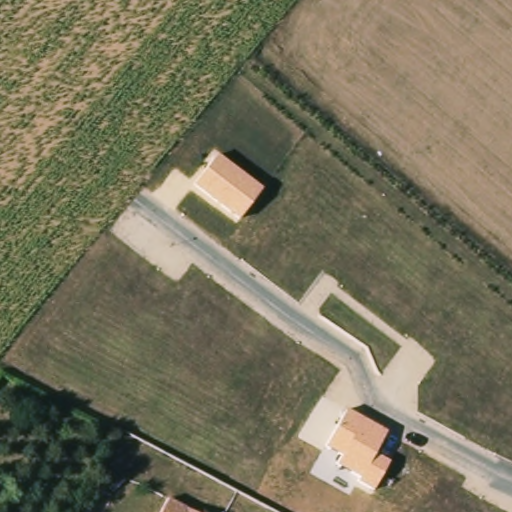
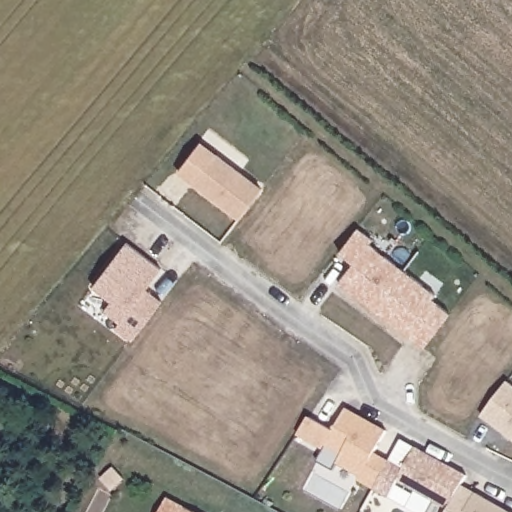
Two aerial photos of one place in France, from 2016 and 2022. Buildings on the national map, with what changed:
unchanged [(194,185),(177,172),(200,142),(217,155),(260,189),(237,219),(194,185)]
new [(338,283),(352,264),(338,253),(357,228),(372,239),(370,244),(437,294),(433,299),(449,312),(422,347),(338,283)]
new [(116,328),(119,324),(104,311),(112,302),(92,286),(127,244),(161,268),(146,289),(162,301),(132,341),(116,328)]
new [(481,417),(507,382),(512,385),(512,441),(481,417)]
unchanged [(356,482),(358,477),(336,465),(341,456),(325,447),(347,408),(387,431),(376,455),(389,460),(372,491),(356,482)]
new [(323,450),(296,434),(308,416),(334,430),(325,447),(323,450)]
new [(402,468),(414,447),(466,475),(461,484),(447,509),(397,481),(388,497),(372,491),(389,460),(402,468)]
new [(446,512),(447,509),(461,484),(509,512),(446,512)]
unchanged [(191,512),(161,512),(167,499),(191,512)]

